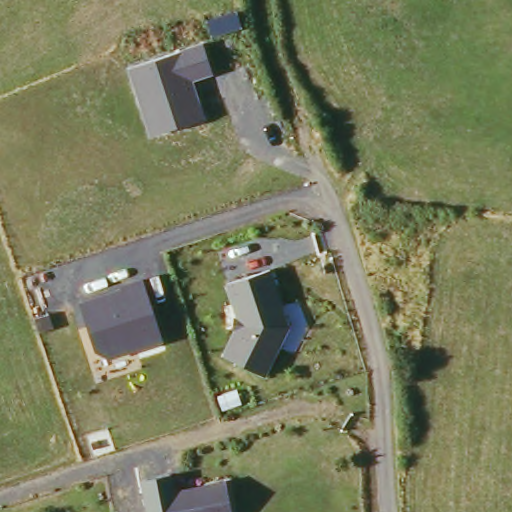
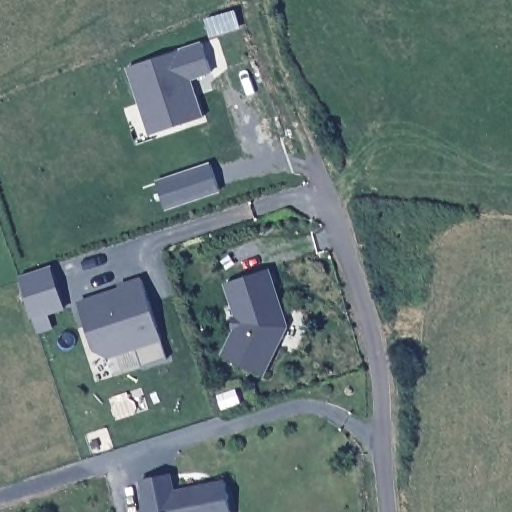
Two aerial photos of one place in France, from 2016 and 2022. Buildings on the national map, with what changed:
unchanged [(204,44),(213,76),(192,83),(203,119),(151,134),(130,68),(204,44)]
new [(212,165),(220,192),(166,210),(157,183),(212,165)]
new [(21,276),(51,267),(65,309),(48,313),(52,328),(38,332),(34,318),(21,276)]
unchanged [(292,320),(265,375),(222,357),(240,324),(228,284),(271,269),(292,320)]
unchanged [(121,289),(121,286),(143,279),(161,339),(109,358),(96,351),(79,301),(121,289)]
unchanged [(167,474),(173,501),(179,499),(178,492),(224,482),(230,512),(146,512),(139,481),(167,474)]

